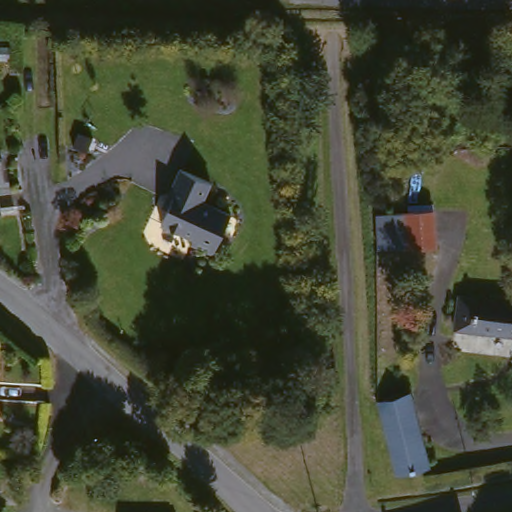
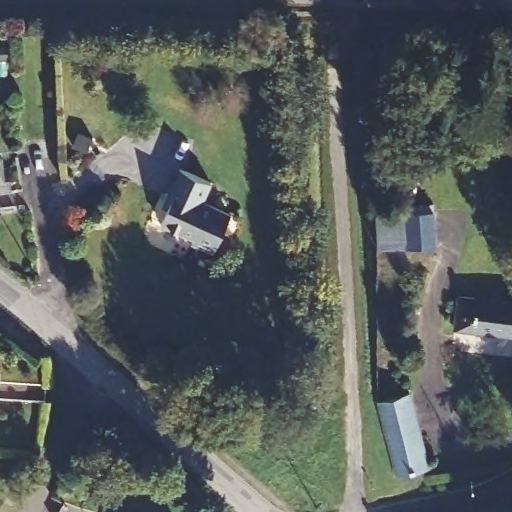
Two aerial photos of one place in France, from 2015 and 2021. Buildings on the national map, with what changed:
unchanged [(4,159),(9,191),(0,194),(0,160),(4,159)]
unchanged [(233,215),(214,253),(192,243),(194,238),(164,223),(177,196),(172,194),(184,169),(214,183),(204,202),(233,215)]
unchanged [(433,254),(407,252),(394,251),(374,249),(377,214),(391,215),(409,216),(436,219),(433,254)]
unchanged [(459,293),(512,297),(512,330),(456,325),(459,293)]
unchanged [(379,401),(399,396),(410,393),(429,467),(398,474),(379,401)]
unchanged [(128,448),(121,458),(99,445),(106,433),(128,448)]

